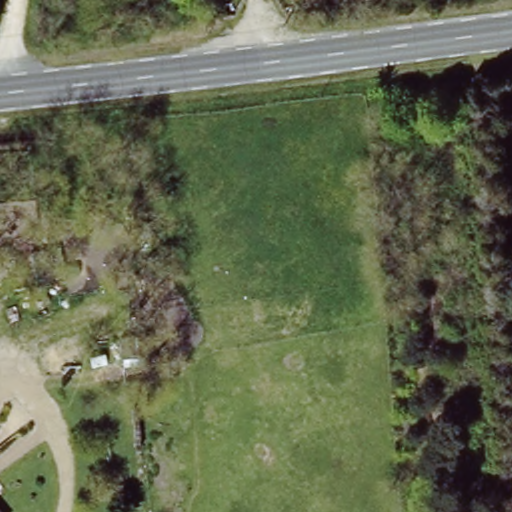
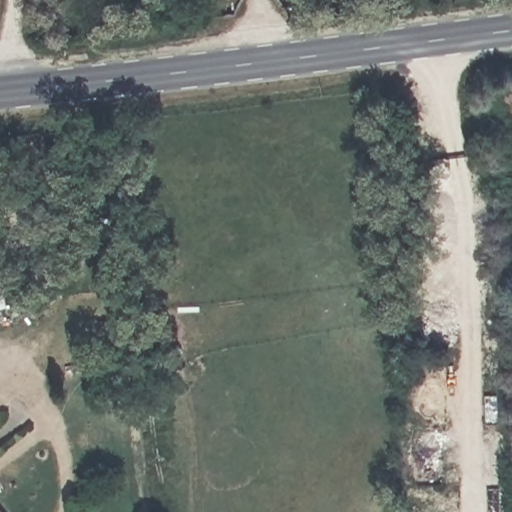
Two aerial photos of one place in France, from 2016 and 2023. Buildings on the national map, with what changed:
unchanged [(0,512),(0,503),(8,512),(0,512)]

